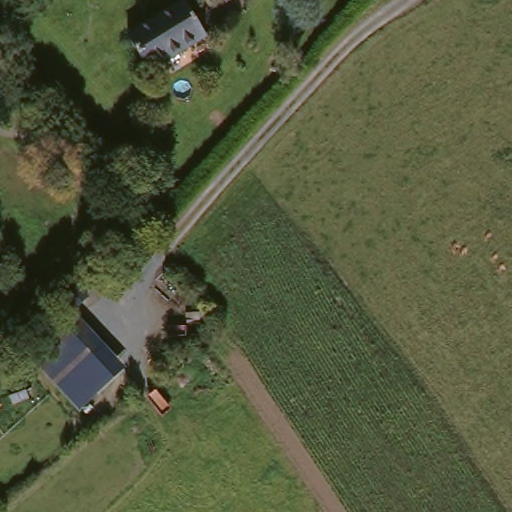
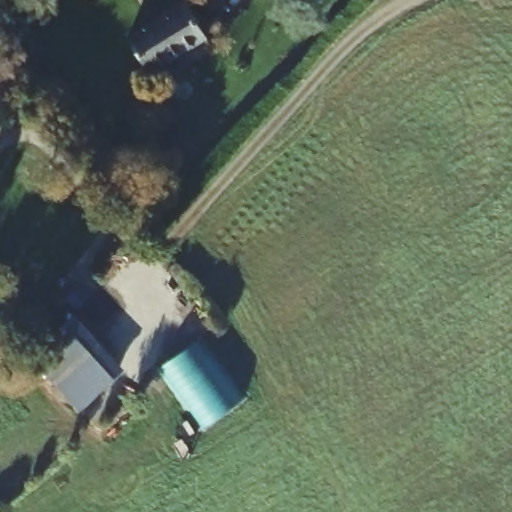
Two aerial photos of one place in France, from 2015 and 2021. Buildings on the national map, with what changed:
unchanged [(210,39),(152,71),(126,22),(167,0),(188,0),(210,39)]
unchanged [(26,351),(73,308),(126,367),(79,410),(26,351)]
new [(196,344),(238,403),(208,425),(166,366),(196,344)]

